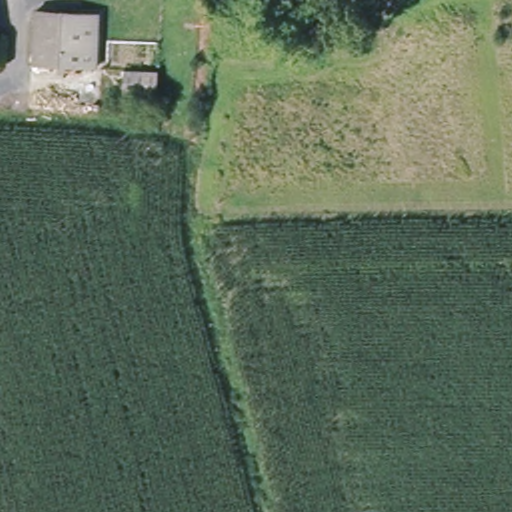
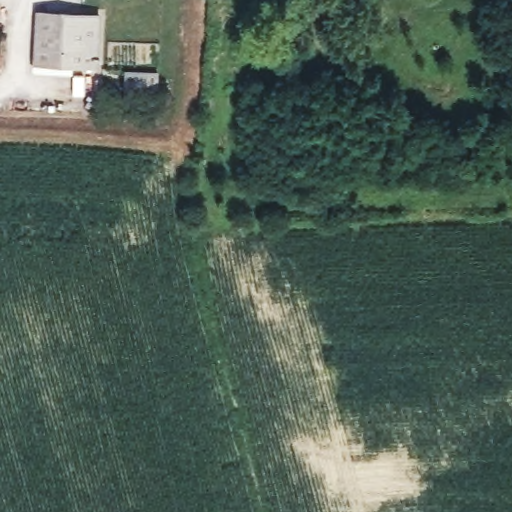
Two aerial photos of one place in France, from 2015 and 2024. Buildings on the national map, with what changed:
unchanged [(101,17),(100,68),(36,67),(36,14),(101,17)]
unchanged [(159,75),(158,99),(124,97),(127,72),(159,75)]

